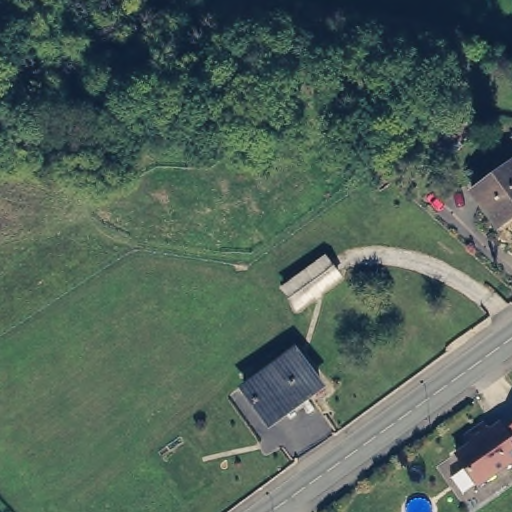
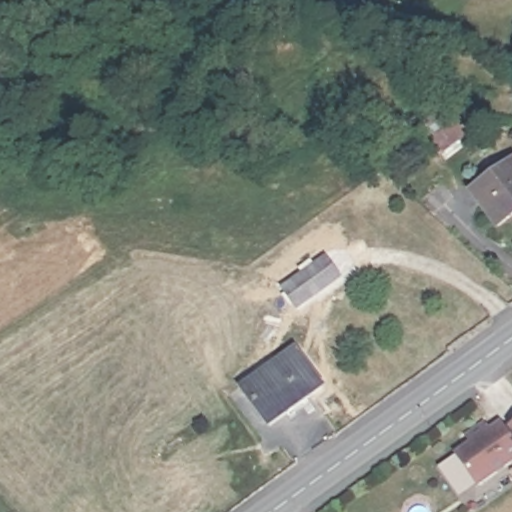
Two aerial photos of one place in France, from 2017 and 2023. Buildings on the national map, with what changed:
unchanged [(433,141),(450,128),(456,124),(464,136),(458,140),(442,152),(433,141)]
unchanged [(472,193),(512,163),(512,217),(497,227),(472,193)]
unchanged [(333,271),(291,301),(279,284),(320,253),(333,271)]
unchanged [(319,381),(291,402),(289,399),(269,414),(246,384),(294,347),(319,381)]
unchanged [(464,435),(484,421),(487,428),(499,418),(507,429),(512,425),(512,463),(477,488),(455,455),(470,444),(464,435)]

